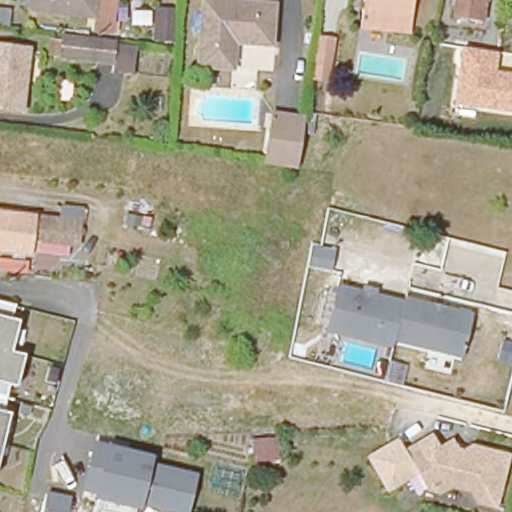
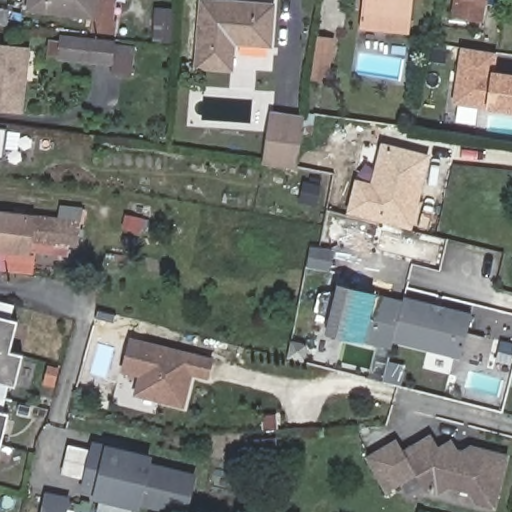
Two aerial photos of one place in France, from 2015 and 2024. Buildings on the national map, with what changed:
unchanged [(110,31),(91,28),(93,14),(28,6),(29,0),(114,0),(110,31)]
unchanged [(269,3),(266,44),(230,41),(228,66),(193,63),(198,0),(226,0),(269,3)]
unchanged [(359,28),(360,16),(362,0),(408,0),(413,0),(411,21),(409,34),(359,28)]
unchanged [(483,23),(454,18),(458,0),(488,0),(483,23)]
unchanged [(147,39),(148,6),(171,6),(169,39),(147,39)]
unchanged [(2,25),(0,25),(0,10),(4,11),(2,25)]
unchanged [(336,32),(332,73),(313,71),(317,30),(336,32)]
unchanged [(120,49),(63,41),(60,60),(52,59),(55,32),(113,38),(113,41),(132,44),(128,73),(117,72),(117,68),(120,49)]
unchanged [(120,49),(117,68),(60,60),(63,41),(120,49)]
unchanged [(0,107),(0,45),(27,48),(18,109),(0,107)]
unchanged [(454,105),(462,48),(498,52),(495,70),(512,73),(512,112),(454,105)]
unchanged [(302,133),(296,171),(264,166),(271,115),(305,119),(302,133)]
new [(346,213),(356,180),(371,182),(381,142),(431,155),(413,228),(403,225),(346,213)]
demolished [(159,201),(154,234),(125,230),(130,197),(159,201)]
unchanged [(56,201),(79,204),(77,219),(74,245),(51,242),(50,252),(27,249),(26,252),(0,249),(0,210),(53,216),(56,201)]
unchanged [(389,349),(326,335),(338,285),(402,298),(400,303),(391,341),(389,349)]
unchanged [(400,303),(402,298),(470,314),(468,320),(459,357),(391,341),(400,303)]
unchanged [(12,319),(18,321),(10,351),(23,355),(14,386),(9,385),(2,412),(6,413),(0,436),(0,301),(16,305),(12,319)]
new [(192,376),(184,409),(134,396),(139,377),(120,372),(130,336),(214,357),(209,379),(192,376)]
unchanged [(502,455),(492,506),(474,503),(467,491),(445,486),(433,494),(423,492),(407,469),(401,473),(391,458),(422,438),(430,451),(443,442),(462,446),(465,447),(502,455)]
unchanged [(155,456),(153,465),(199,476),(190,512),(166,512),(83,494),(94,443),(155,456)]
unchanged [(42,512),(47,492),(72,497),(69,512),(42,512)]

